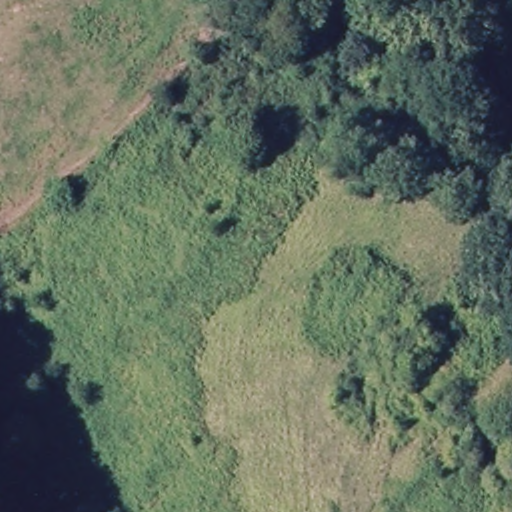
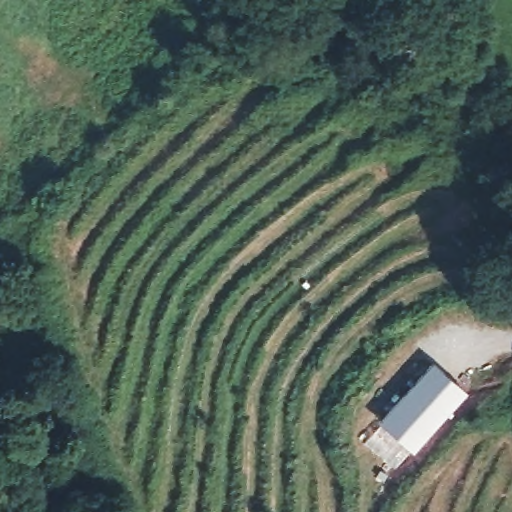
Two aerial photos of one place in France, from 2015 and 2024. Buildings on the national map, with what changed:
new [(468,394),(414,452),(378,420),(432,362),(468,394)]

